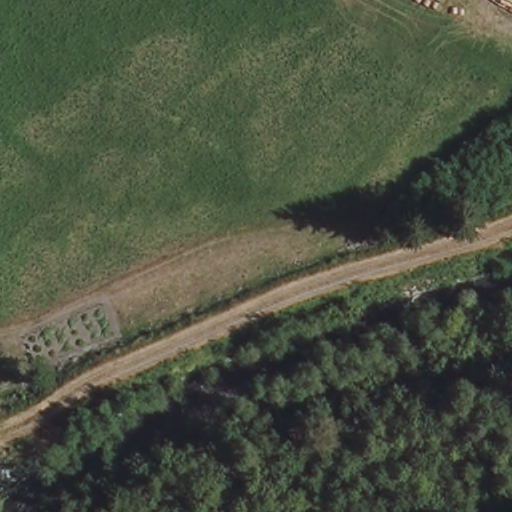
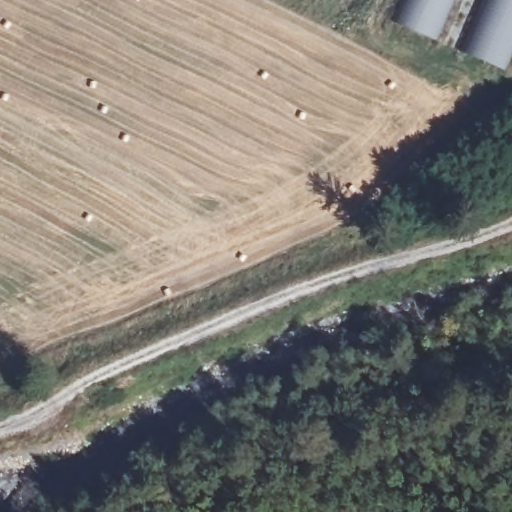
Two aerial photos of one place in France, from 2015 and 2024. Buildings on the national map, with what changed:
new [(387,18),(396,0),(455,0),(437,40),(387,18)]
new [(458,50),(480,0),(512,0),(512,56),(505,70),(458,50)]

